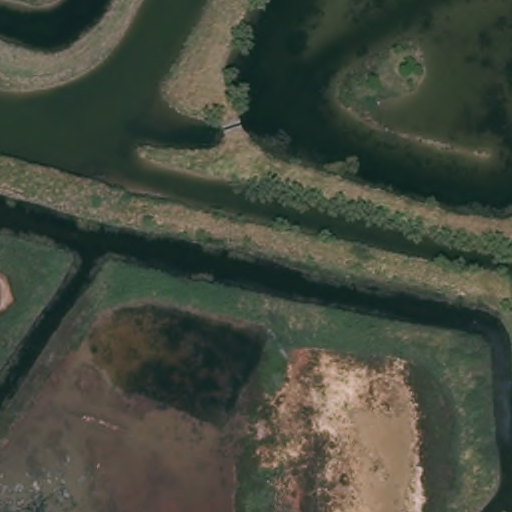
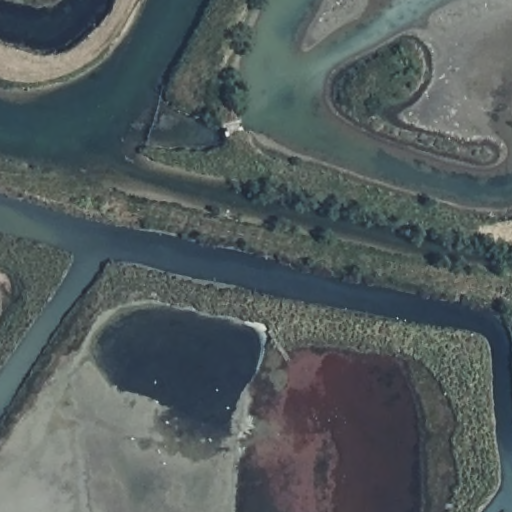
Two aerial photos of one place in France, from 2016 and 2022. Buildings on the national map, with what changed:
[]

